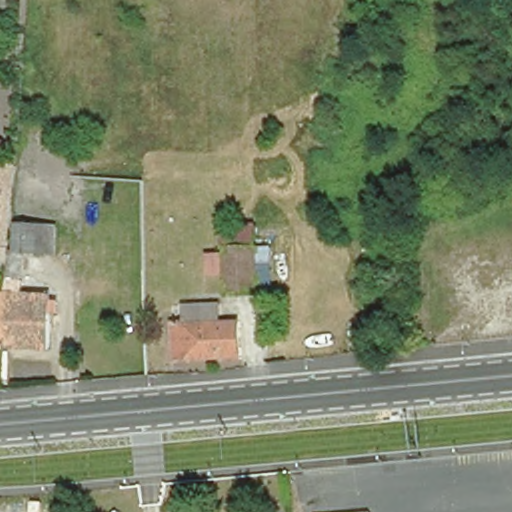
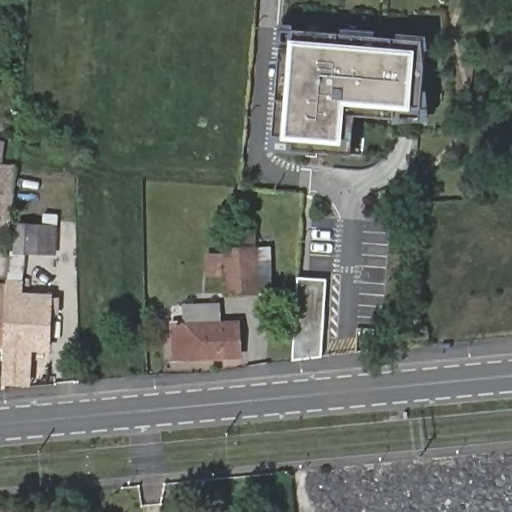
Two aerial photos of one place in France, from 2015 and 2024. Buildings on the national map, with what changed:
new [(423,65),(420,107),(412,106),(411,111),(395,109),(393,119),(355,116),(351,154),(292,149),(292,140),(282,140),(282,136),(274,136),(282,46),(289,46),(290,39),(293,39),(294,31),(421,41),(423,65)]
unchanged [(11,235),(10,240),(0,240),(0,203),(13,203),(11,235)]
unchanged [(207,255),(224,255),(223,230),(223,228),(255,227),(255,229),(257,292),(225,293),(225,272),(208,273),(207,255)]
unchanged [(13,254),(16,229),(56,229),(55,255),(22,254),(20,297),(6,297),(9,253),(13,254)]
new [(322,356),(292,360),(297,277),(326,278),(322,356)]
unchanged [(0,350),(0,297),(6,297),(3,350),(0,350)]
unchanged [(20,297),(46,298),(45,350),(3,350),(6,297),(20,297)]
unchanged [(237,359),(186,362),(172,363),(172,354),(171,330),(185,329),(184,311),(217,310),(218,328),(237,328),(237,359)]

